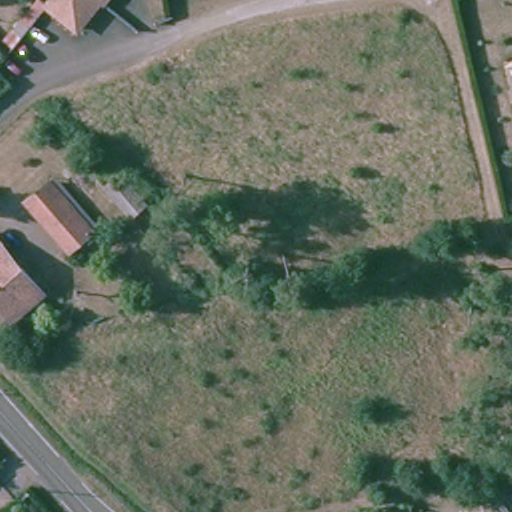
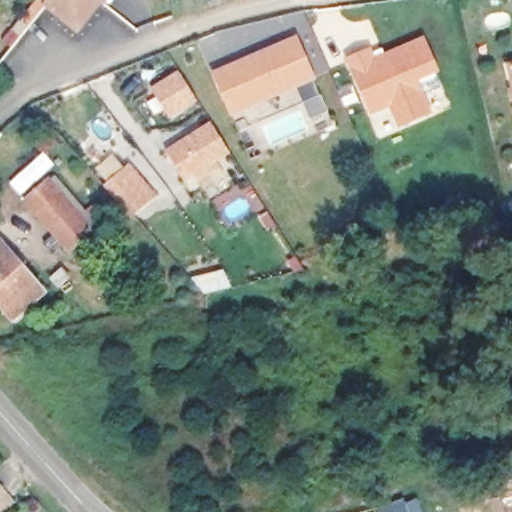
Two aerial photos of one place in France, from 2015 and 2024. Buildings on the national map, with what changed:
unchanged [(78,19),(74,25),(45,1),(43,0),(95,0),(78,19)]
new [(214,72),(298,36),(317,80),(232,116),(214,72)]
new [(348,58),(372,48),(376,57),(425,37),(440,71),(418,82),(430,111),(401,126),(390,106),(372,114),(348,58)]
new [(152,89),(180,71),(199,101),(172,118),(152,89)]
new [(167,150),(211,122),(230,152),(186,181),(167,150)]
unchanged [(132,163),(157,192),(139,209),(113,181),(132,163)]
unchanged [(35,217),(22,203),(42,184),(87,232),(72,244),(66,250),(35,217)]
unchanged [(0,308),(0,248),(37,288),(9,317),(0,308)]

